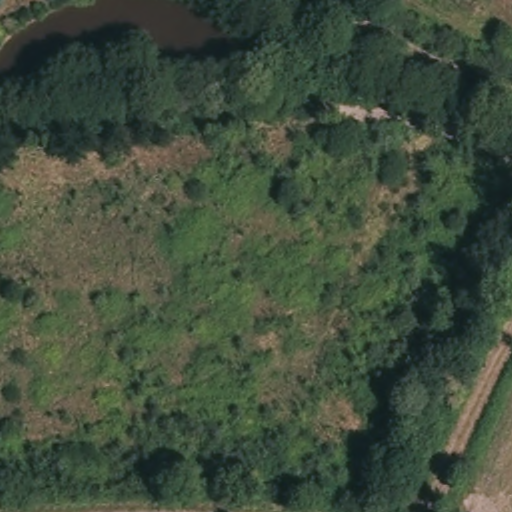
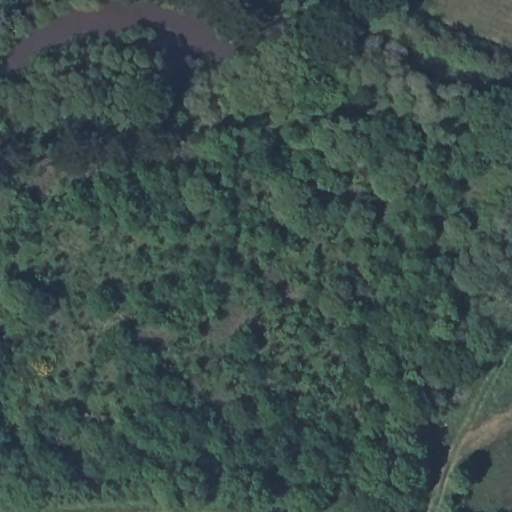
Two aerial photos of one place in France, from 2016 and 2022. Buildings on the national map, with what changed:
[]

